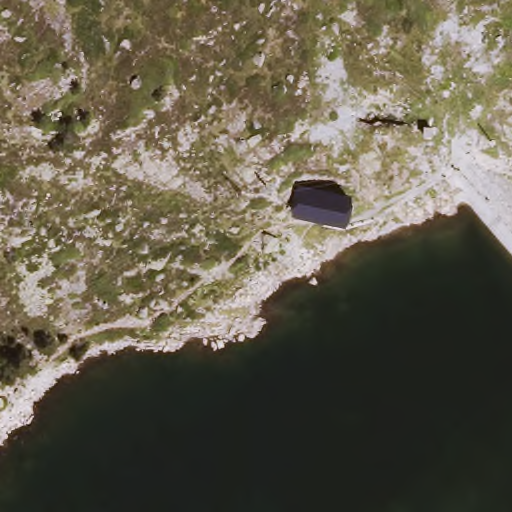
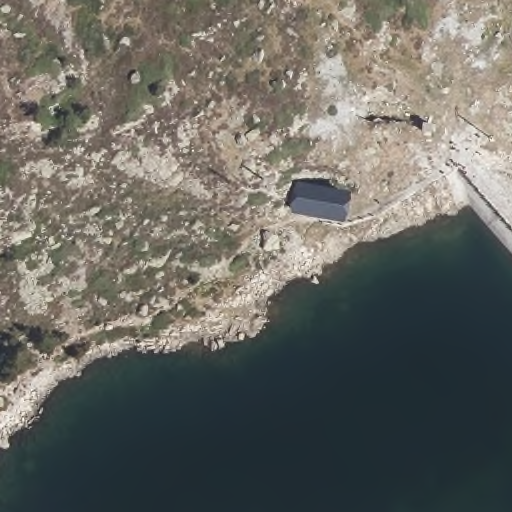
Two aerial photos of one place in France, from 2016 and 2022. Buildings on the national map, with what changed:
unchanged [(346,186),(345,200),(342,218),(287,210),(292,178),(346,186)]

